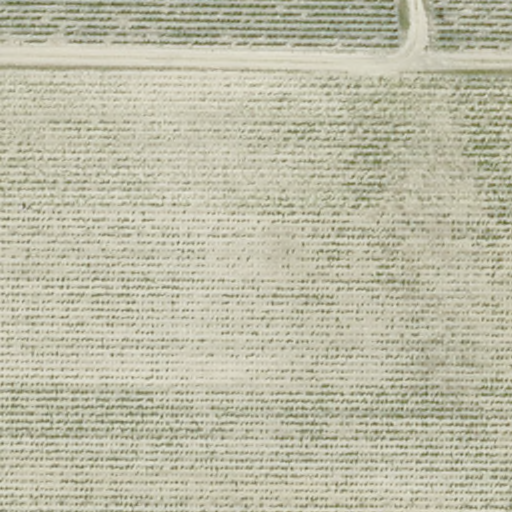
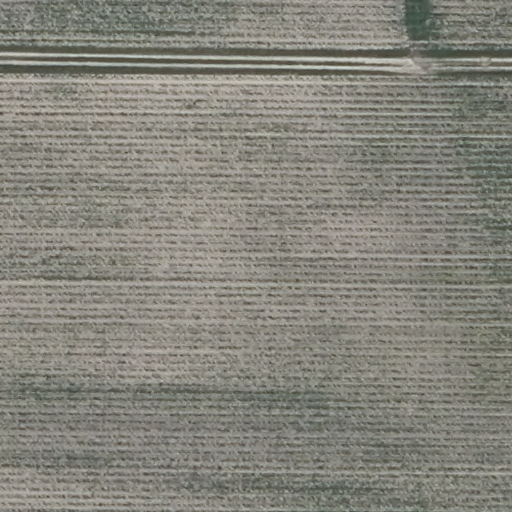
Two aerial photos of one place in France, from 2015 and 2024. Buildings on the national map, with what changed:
[]

